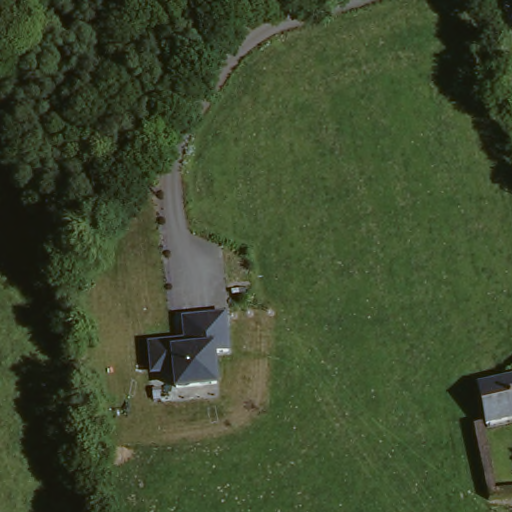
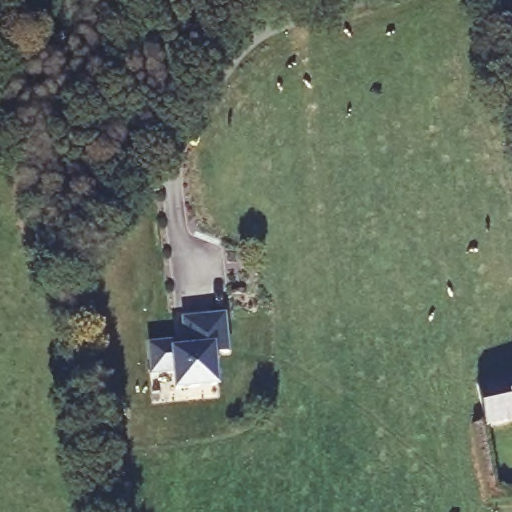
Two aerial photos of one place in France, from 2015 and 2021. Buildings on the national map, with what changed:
unchanged [(185,313),(227,307),(232,346),(217,347),(221,378),(181,383),(179,365),(156,368),(152,339),(176,336),(177,344),(189,342),(185,313)]
unchanged [(512,374),(512,413),(487,418),(478,380),(512,374)]

